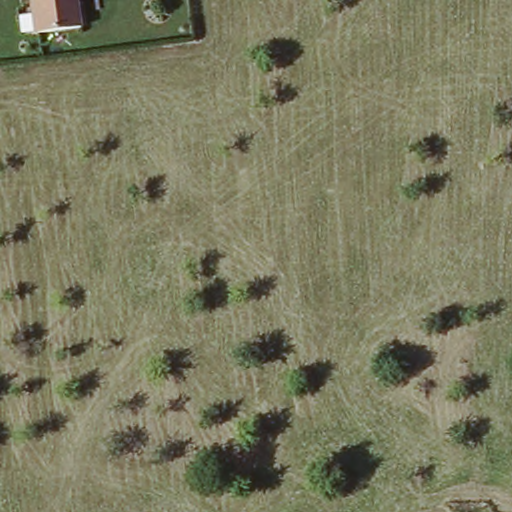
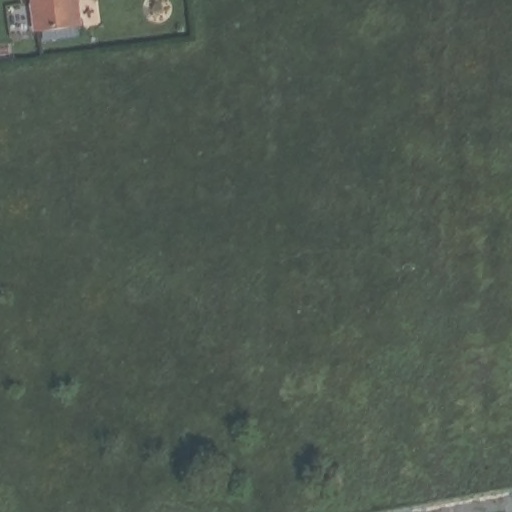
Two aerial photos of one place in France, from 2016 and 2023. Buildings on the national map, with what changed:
unchanged [(85,30),(36,36),(31,0),(81,0),(85,30)]

